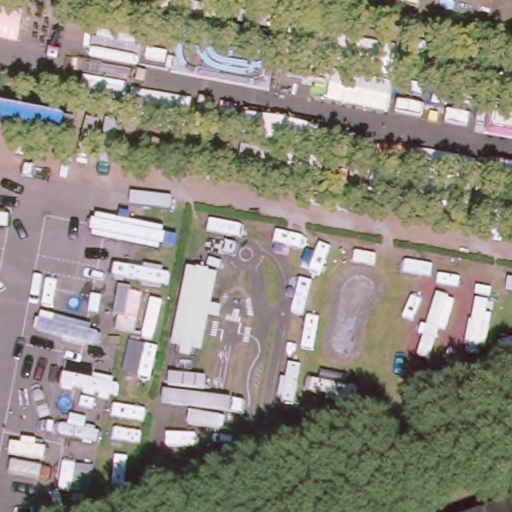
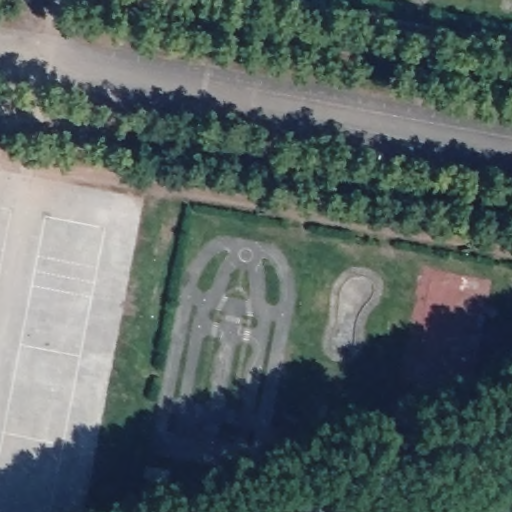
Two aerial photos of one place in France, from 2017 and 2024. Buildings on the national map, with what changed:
unchanged [(164,497),(137,492),(139,478),(167,483),(164,497)]
unchanged [(512,499),(512,512),(477,512),(512,499)]

